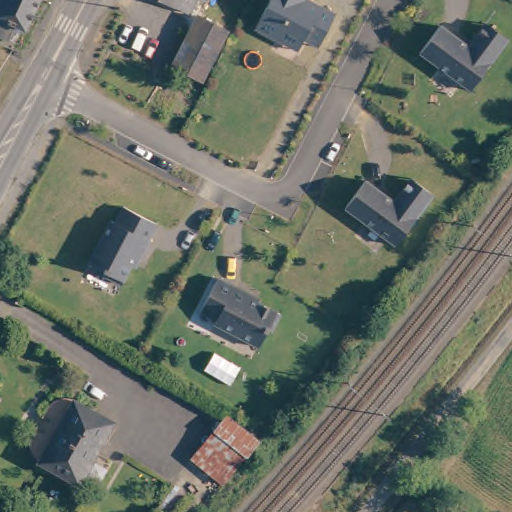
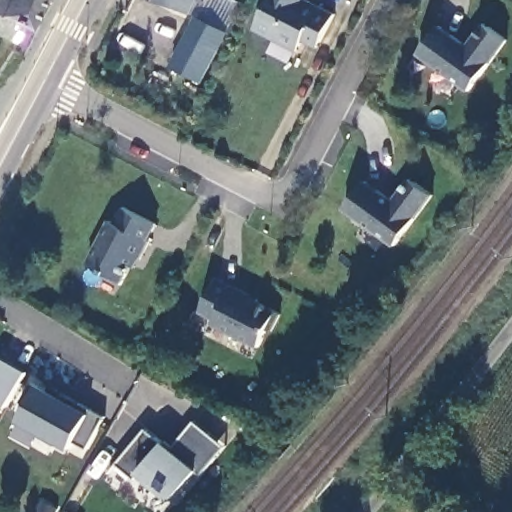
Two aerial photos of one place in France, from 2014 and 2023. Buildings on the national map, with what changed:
unchanged [(5,46),(0,43),(0,0),(37,0),(21,35),(18,33),(11,48),(5,46)]
unchanged [(184,13),(171,6),(157,0),(190,0),(184,13)]
unchanged [(202,2),(199,0),(202,0),(202,2)]
unchanged [(277,38),(256,27),(270,0),(311,0),(310,2),(319,7),(320,4),(336,12),(322,40),(319,45),(305,38),(301,44),(299,49),(277,38)]
unchanged [(167,67),(193,15),(221,30),(196,81),(167,67)]
unchanged [(439,29),(469,47),(484,23),(508,37),(475,91),(422,58),(439,29)]
unchanged [(367,181),(394,204),(412,182),(433,200),(393,248),(345,207),(367,181)]
unchanged [(131,267),(122,286),(105,278),(106,274),(89,265),(110,222),(115,224),(122,208),(156,224),(148,241),(149,241),(140,261),(139,260),(135,269),(131,267)]
unchanged [(272,334),(269,332),(259,349),(215,327),(217,322),(201,314),(218,281),(250,297),(260,302),(259,305),(281,317),(272,334)]
new [(7,409),(0,405),(0,360),(1,358),(27,372),(7,409)]
new [(76,442),(70,449),(18,422),(27,406),(21,402),(34,380),(41,384),(90,410),(105,418),(87,449),(76,442)]
demolished [(95,412),(92,417),(110,426),(79,483),(39,459),(34,457),(31,453),(29,448),(29,442),(30,437),(44,410),(47,406),(51,402),(55,400),(60,398),(66,399),(72,400),(77,403),(87,407),(95,412)]
new [(118,465),(148,429),(166,441),(174,448),(195,422),(225,446),(202,474),(198,470),(173,501),(140,474),(134,480),(118,465)]

